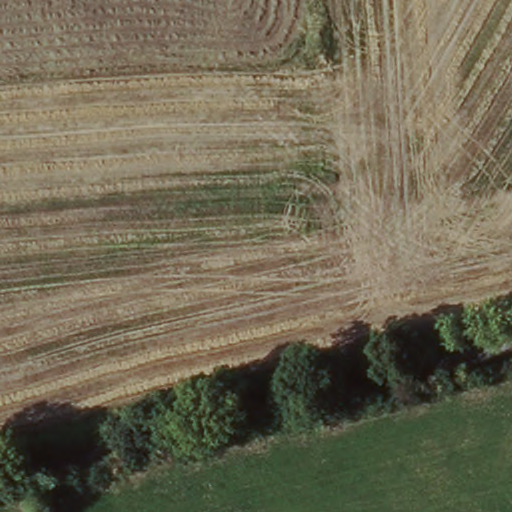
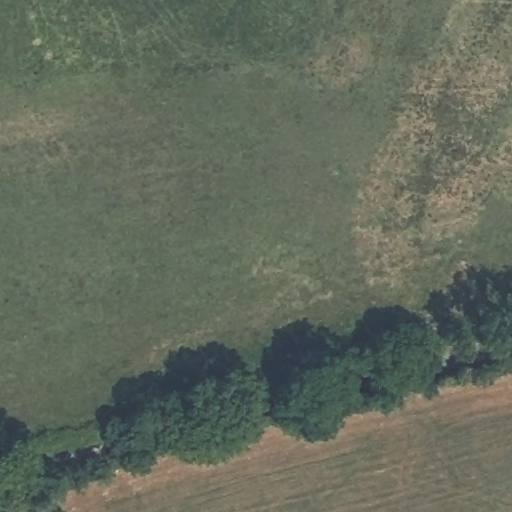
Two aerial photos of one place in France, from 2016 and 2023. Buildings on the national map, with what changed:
[]

